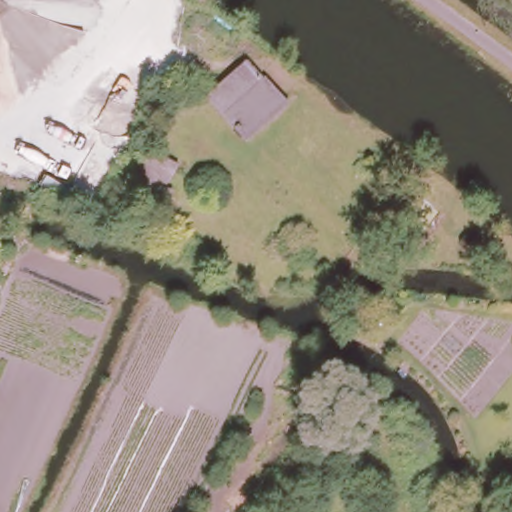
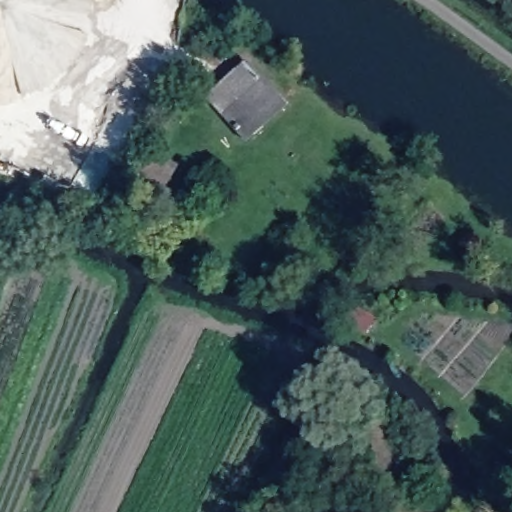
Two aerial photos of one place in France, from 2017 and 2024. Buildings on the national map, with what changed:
unchanged [(205,96),(248,63),(289,105),(248,141),(205,96)]
unchanged [(162,205),(126,184),(143,153),(147,145),(170,159),(177,163),(163,188),(170,192),(162,205)]

